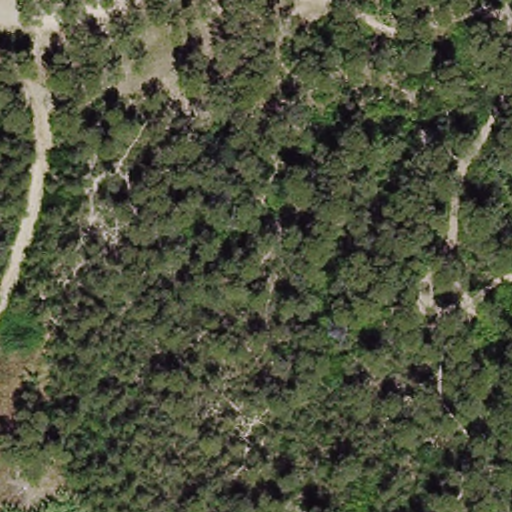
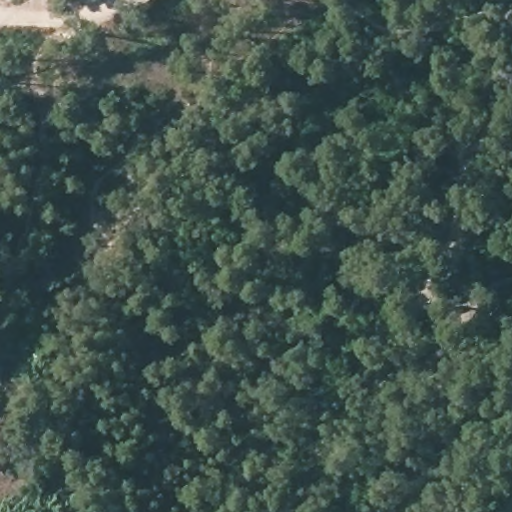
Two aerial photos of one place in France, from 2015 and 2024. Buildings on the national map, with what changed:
[]

